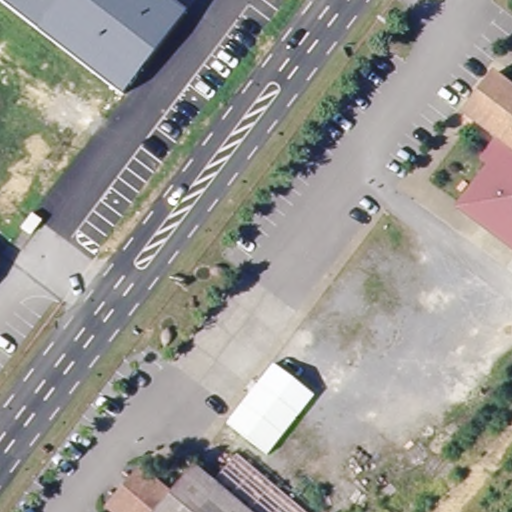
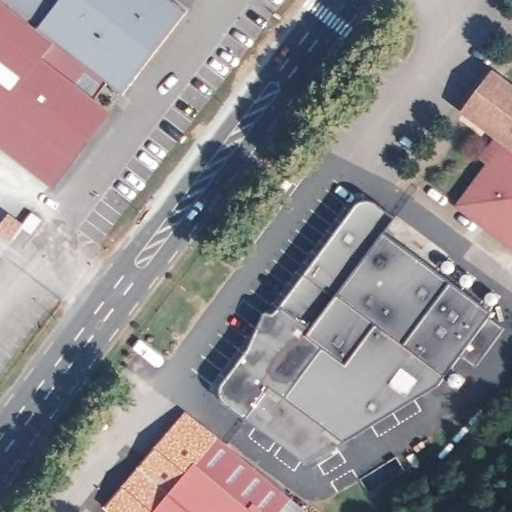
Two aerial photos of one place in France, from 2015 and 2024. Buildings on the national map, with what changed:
new [(54,42),(41,58),(113,112),(53,190),(0,148),(0,0),(2,0),(54,42)]
unchanged [(188,13),(122,96),(2,0),(172,0),(188,13)]
unchanged [(494,76),(501,81),(512,89),(512,247),(461,208),(491,168),(482,161),(499,138),(473,118),(466,112),(494,76)]
new [(271,316),(275,315),(280,310),(358,206),(365,203),(371,201),(396,218),(385,236),(491,315),(487,320),(503,330),(474,370),(458,359),(439,384),(345,443),(308,464),(245,418),(235,411),(221,399),(221,390),(230,372),(250,351),(264,313),(271,316)]
unchanged [(47,210),(56,217),(45,231),(36,224),(47,210)]
unchanged [(139,470),(163,491),(192,457),(257,512),(113,512),(108,509),(139,470)]

